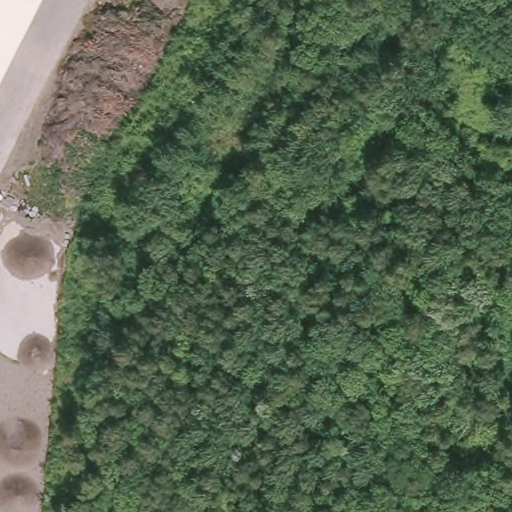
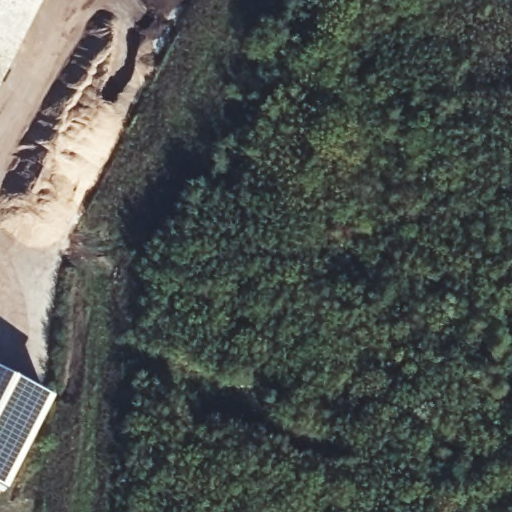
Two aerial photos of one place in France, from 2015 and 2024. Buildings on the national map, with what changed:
unchanged [(0,0),(39,0),(0,76),(0,0)]
new [(0,490),(0,371),(54,399),(6,493),(0,490)]

